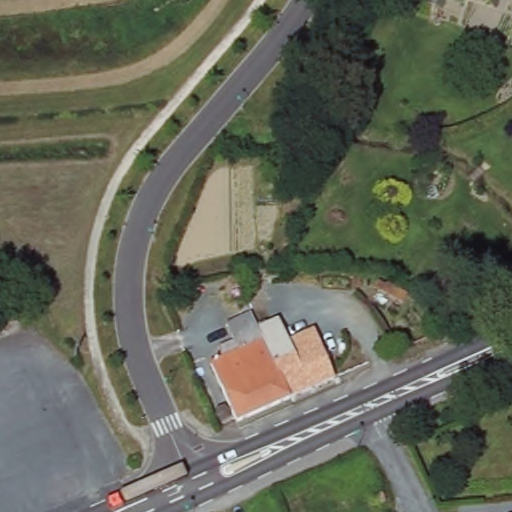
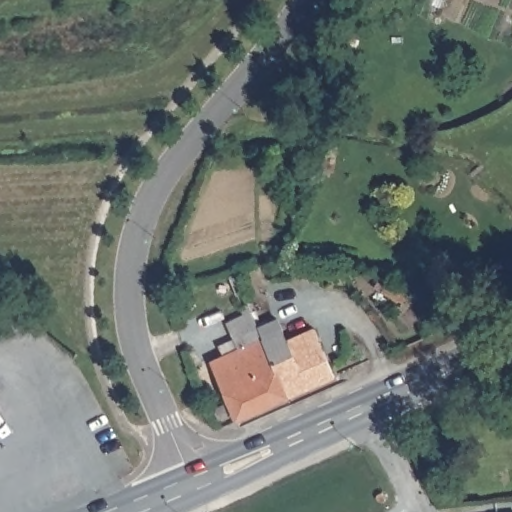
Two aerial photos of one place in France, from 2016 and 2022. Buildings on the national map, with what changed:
unchanged [(378,282),(385,286),(387,283),(406,294),(400,305),(374,291),(378,282)]
unchanged [(219,358),(213,347),(229,339),(221,322),(246,311),(254,327),(284,399),(231,422),(206,365),(219,358)]
unchanged [(271,319),(282,343),(311,331),(332,379),(284,399),(254,327),(271,319)]

